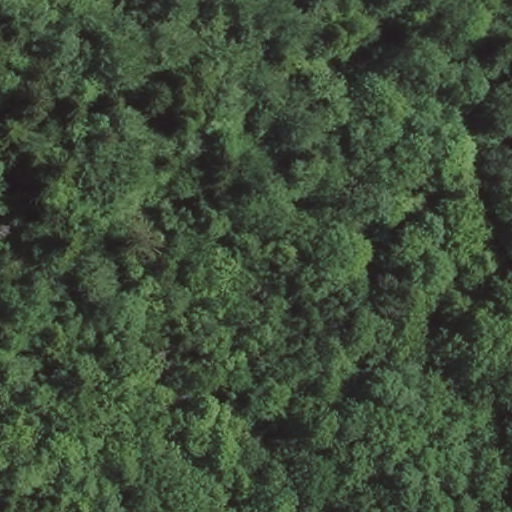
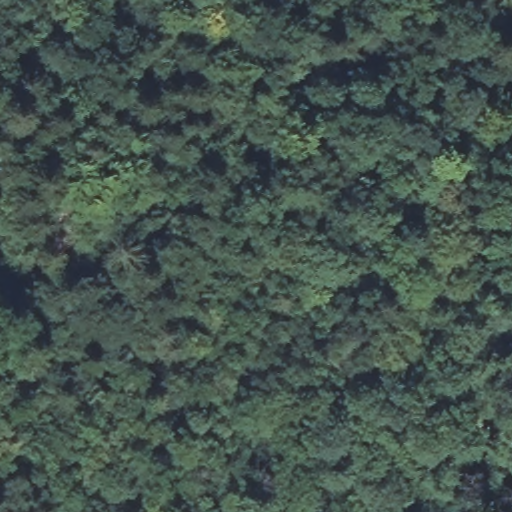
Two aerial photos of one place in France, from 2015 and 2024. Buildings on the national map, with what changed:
unchanged [(502,291),(512,279),(512,300),(502,291)]
unchanged [(499,417),(512,399),(512,426),(499,417)]

